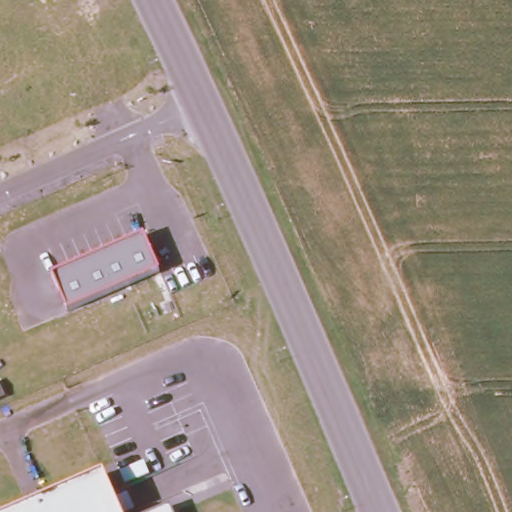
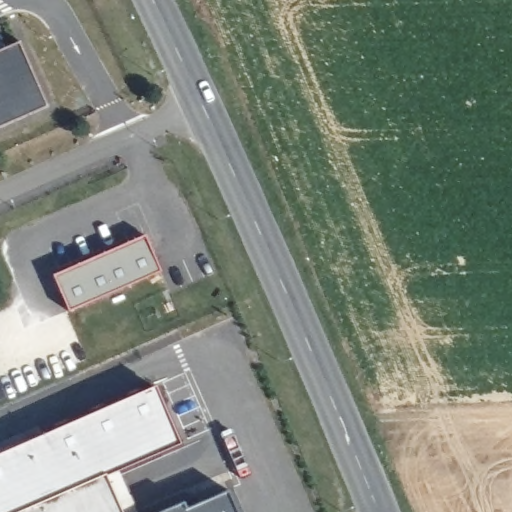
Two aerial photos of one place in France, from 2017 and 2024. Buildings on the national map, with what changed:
new [(52,111),(0,133),(0,57),(23,47),(52,111)]
unchanged [(55,276),(147,235),(163,272),(71,313),(55,276)]
new [(185,440),(111,472),(129,512),(0,512),(0,453),(160,382),(185,440)]
demolished [(122,512),(16,512),(105,473),(122,512)]
new [(192,507),(235,488),(245,512),(160,512),(189,499),(192,507)]
demolished [(172,512),(160,512),(170,507),(172,512)]

